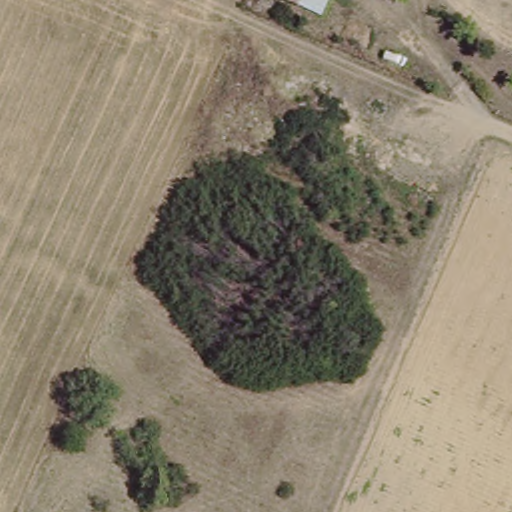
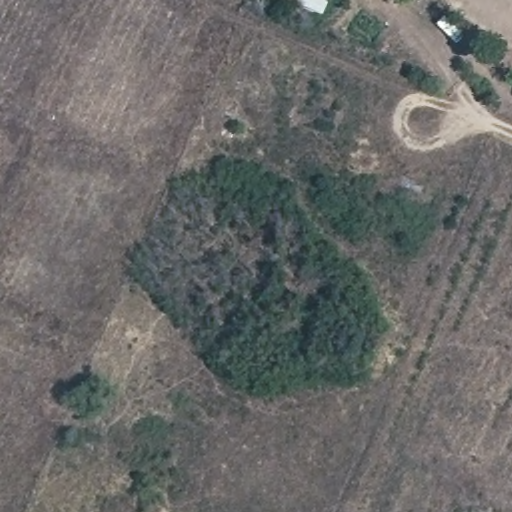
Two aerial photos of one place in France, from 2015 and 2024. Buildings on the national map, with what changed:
unchanged [(303,1),(298,0),(303,0),(303,1)]

